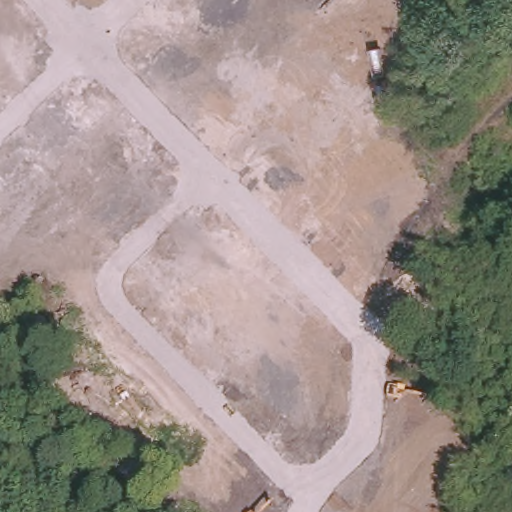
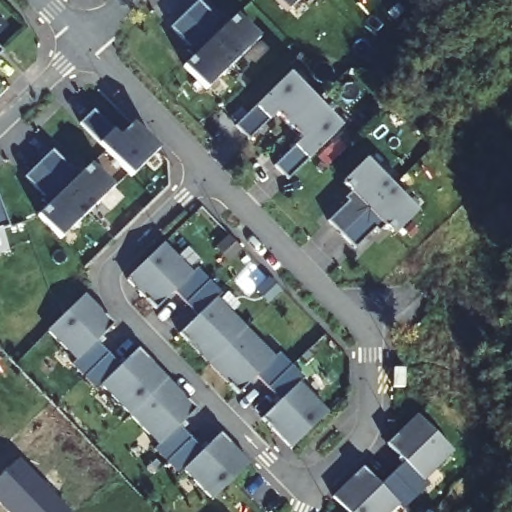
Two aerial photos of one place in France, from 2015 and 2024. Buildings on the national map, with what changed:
new [(287,12),(276,0),(299,0),(287,12)]
new [(198,1),(218,21),(221,17),(227,24),(237,15),(260,39),(232,65),(185,14),(198,1)]
new [(185,14),(232,65),(206,90),(183,66),(192,57),(186,51),(190,47),(170,27),(185,14)]
new [(0,54),(0,49),(2,52),(0,54)]
new [(289,75),(315,101),(288,127),(275,114),(249,140),(235,127),(289,75)]
new [(301,140),(288,127),(315,101),(341,128),(288,180),(274,166),(301,140)]
new [(93,111),(119,137),(133,124),(158,150),(130,177),(80,124),(93,111)]
new [(52,151),(72,171),(75,167),(81,174),(91,165),(113,188),(87,214),(39,164),(52,151)]
new [(348,202),(345,199),(351,192),(342,183),(366,160),(391,186),(341,235),(328,222),(348,202)]
new [(39,164),(87,214),(61,238),(39,216),(48,207),(41,201),(45,197),(25,177),(39,164)]
new [(391,186),(418,213),(395,236),(385,227),(378,233),(375,230),(355,249),(341,235),(391,186)]
new [(0,231),(0,201),(10,227),(0,231)]
new [(0,253),(0,231),(7,250),(0,253)]
new [(164,243),(192,272),(196,268),(209,282),(185,304),(174,292),(156,309),(127,279),(164,243)]
new [(197,316),(185,304),(209,282),(221,295),(217,298),(246,328),(209,364),(179,333),(197,316)]
new [(85,295),(114,325),(96,342),(108,354),(85,377),(72,364),(76,360),(48,331),(85,295)]
new [(246,328),(275,357),(279,353),(291,366),(267,388),(256,377),(238,394),(209,364),(246,328)]
new [(108,354),(120,366),(138,349),(167,379),(130,416),(102,386),(97,390),(85,377),(108,354)]
new [(280,401),(267,388),(291,366),(305,379),(300,383),(328,413),(291,449),(261,418),(280,401)]
new [(167,379),(197,409),(179,427),(190,439),(167,462),(155,449),(159,445),(130,416),(167,379)]
new [(417,415),(453,452),(423,481),(427,485),(415,497),(392,474),(404,462),(386,444),(417,415)]
new [(190,439),(202,451),(220,433),(250,464),(213,500),(184,471),(180,475),(167,462),(190,439)]
new [(5,512),(0,507),(0,475),(19,457),(68,512),(5,512)]
new [(380,485),(392,474),(415,497),(402,510),(398,506),(391,512),(347,512),(332,497),(363,467),(380,485)]

